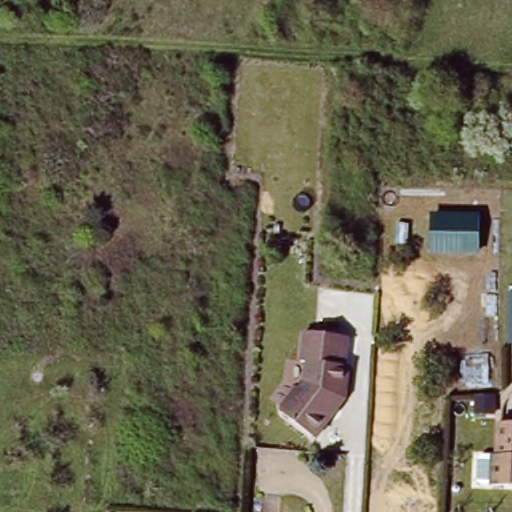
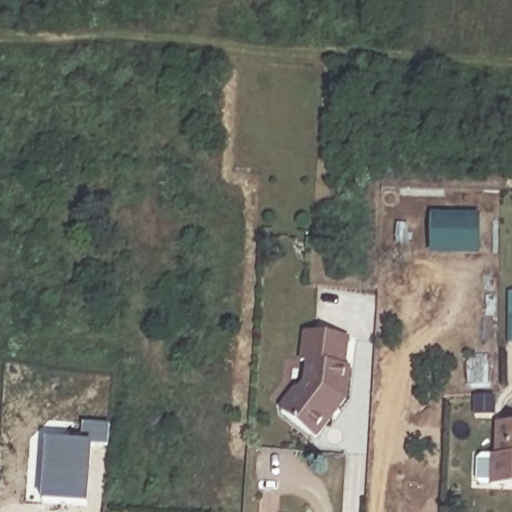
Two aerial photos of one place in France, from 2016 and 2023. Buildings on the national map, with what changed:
unchanged [(431,212),(482,213),(481,254),(430,254),(431,212)]
unchanged [(349,330),(343,400),(309,439),(275,408),(293,380),(299,382),(303,362),(297,360),(299,328),(349,330)]
new [(44,439),(79,441),(81,422),(106,423),(104,445),(88,444),(88,459),(82,459),(81,477),(85,477),(83,505),(40,502),(44,439)]
unchanged [(476,463),(481,458),(494,458),(496,458),(497,426),(512,427),(512,489),(494,487),(479,487),(475,482),(476,463)]

